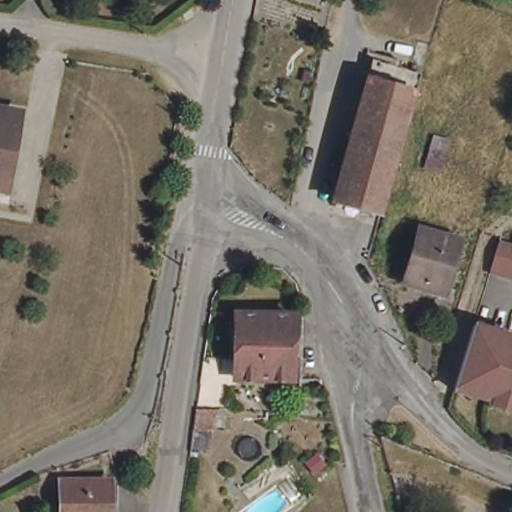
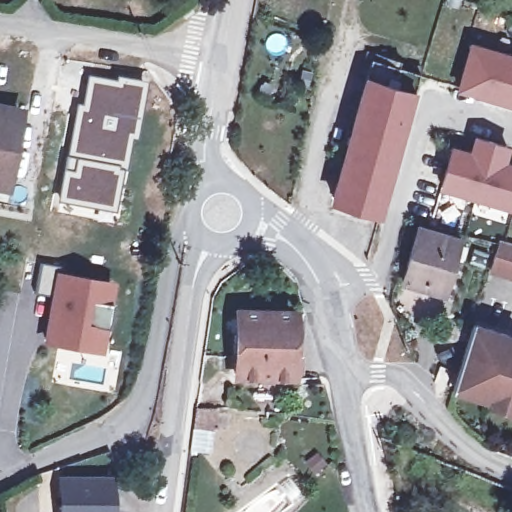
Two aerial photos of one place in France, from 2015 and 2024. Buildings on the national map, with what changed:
new [(512,53),(512,106),(457,90),(470,41),(512,53)]
unchanged [(379,209),(334,197),(366,76),(372,57),(418,71),(412,90),(379,209)]
new [(76,104),(83,104),(88,76),(116,80),(116,76),(145,82),(135,140),(129,139),(115,212),(58,202),(76,104)]
unchanged [(16,110),(10,146),(16,147),(8,189),(0,187),(0,107),(16,110)]
demolished [(438,169),(426,165),(435,136),(447,140),(438,169)]
new [(483,198),(449,188),(459,149),(478,155),(483,140),(498,144),(483,198)]
new [(512,153),(509,164),(512,165),(512,206),(483,198),(498,144),(512,148),(512,153)]
unchanged [(441,296),(408,287),(425,231),(463,243),(458,260),(447,298),(441,296)]
unchanged [(512,249),(512,283),(490,276),(499,245),(512,249)]
new [(63,278),(112,286),(108,305),(113,306),(109,330),(104,329),(101,348),(75,343),(74,347),(51,344),(58,299),(39,296),(43,265),(64,269),(63,278)]
unchanged [(284,378),(230,377),(232,312),(286,314),(296,314),(294,378),(284,378)]
unchanged [(491,397),(458,387),(460,378),(474,334),(477,323),(512,333),(512,398),(493,393),(491,397)]
unchanged [(208,452),(189,449),(195,410),(213,409),(208,452)]
unchanged [(106,479),(115,479),(115,512),(59,512),(59,479),(106,479)]

